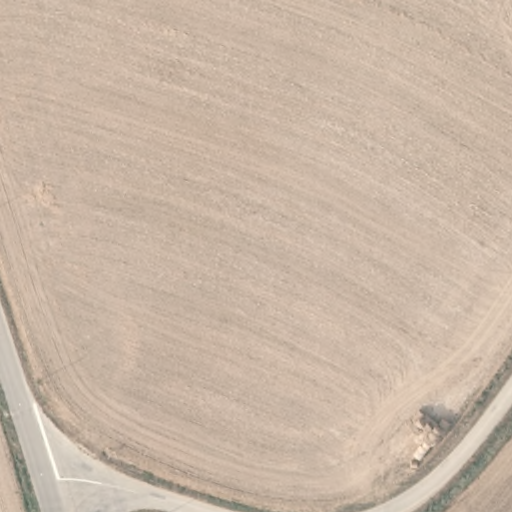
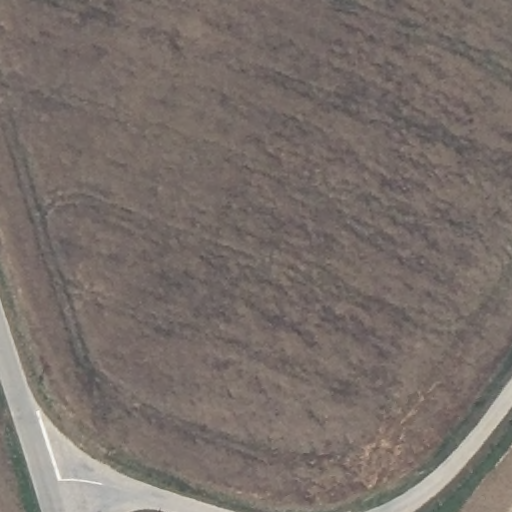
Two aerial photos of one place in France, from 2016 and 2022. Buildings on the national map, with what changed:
[]

